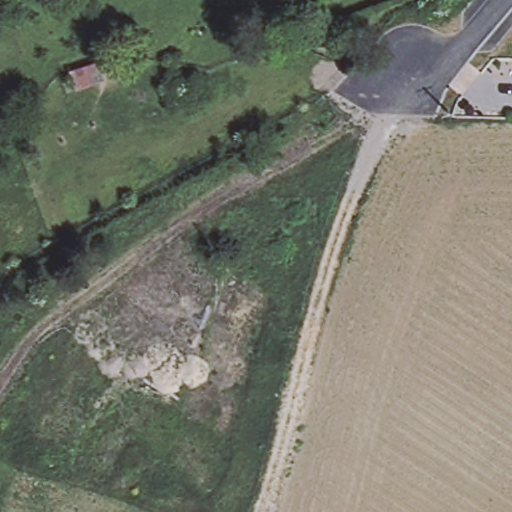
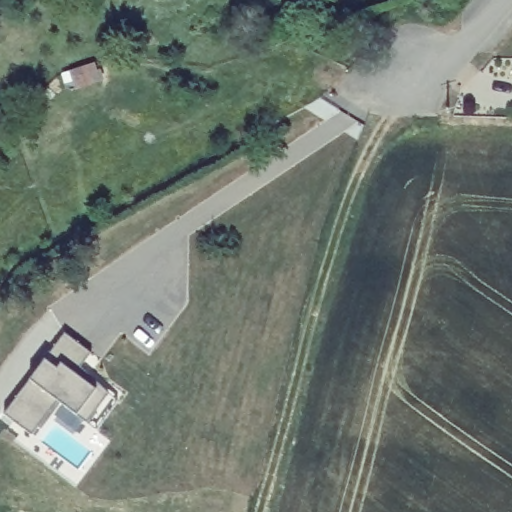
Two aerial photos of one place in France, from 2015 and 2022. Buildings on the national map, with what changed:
new [(6,415),(31,381),(46,360),(65,335),(91,355),(80,368),(109,395),(89,424),(77,416),(57,401),(31,435),(6,415)]

